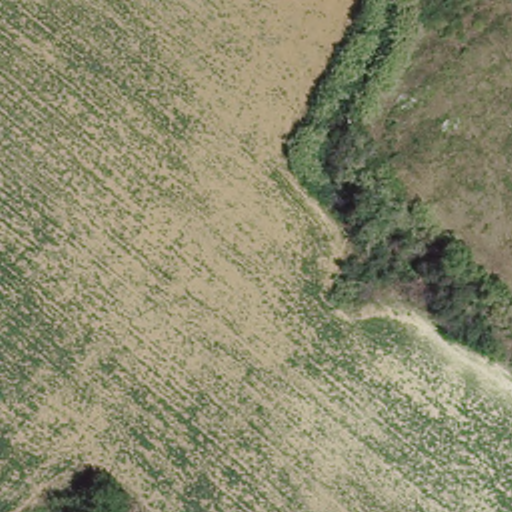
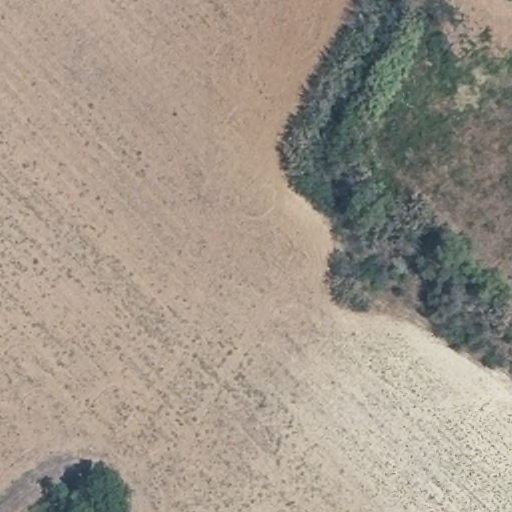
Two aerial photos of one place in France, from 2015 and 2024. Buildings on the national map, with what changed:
[]

